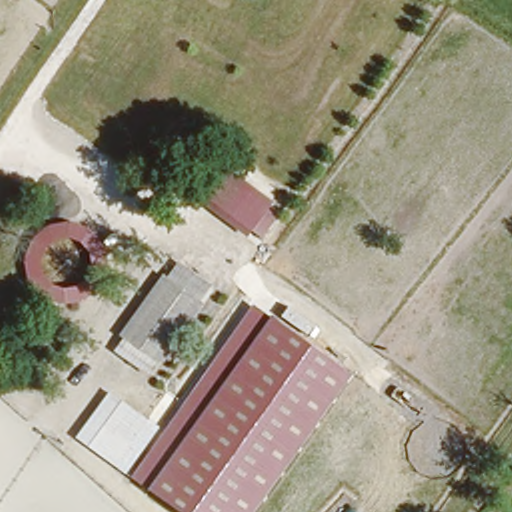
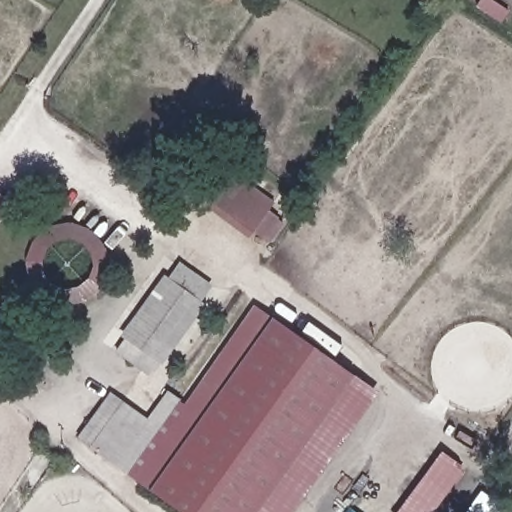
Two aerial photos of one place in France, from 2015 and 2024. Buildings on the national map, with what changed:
unchanged [(269,207),(280,216),(262,240),(253,232),(249,237),(202,204),(226,170),(273,202),(269,207)]
unchanged [(103,246),(108,268),(97,291),(84,301),(65,305),(39,297),(28,280),(25,262),(32,240),(49,226),(69,222),(88,229),(103,246)]
unchanged [(200,301),(204,303),(162,365),(157,362),(148,374),(115,351),(124,338),(119,335),(163,275),(168,278),(178,262),(212,285),(200,301)]
unchanged [(76,438),(110,392),(164,430),(252,305),(271,318),(375,402),(296,512),(180,512),(149,491),(131,477),(76,438)]
new [(399,512),(441,451),(465,467),(434,512),(399,512)]
unchanged [(354,512),(345,512),(349,507),(354,512)]

